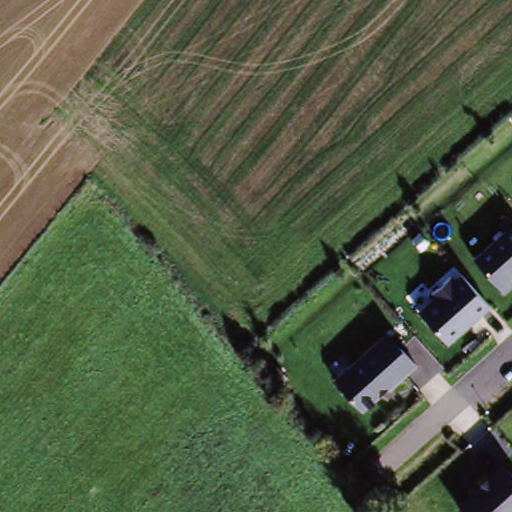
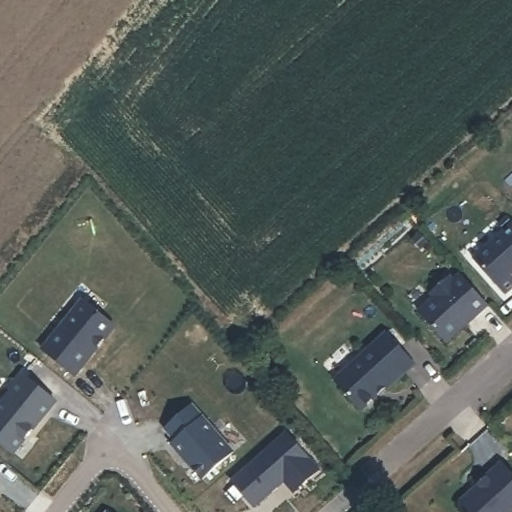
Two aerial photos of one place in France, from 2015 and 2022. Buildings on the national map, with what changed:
unchanged [(512,278),(512,290),(505,296),(472,258),(512,223),(512,278)]
unchanged [(491,307),(447,346),(417,311),(458,271),(491,307)]
new [(84,300),(117,325),(78,375),(52,355),(45,350),(53,339),(84,300)]
unchanged [(333,377),(385,329),(417,365),(363,413),(333,377)]
new [(25,376),(57,401),(16,455),(0,442),(0,409),(25,376)]
new [(195,406),(237,452),(207,480),(175,446),(180,442),(169,430),(195,406)]
new [(287,435),(319,470),(295,492),(285,481),(255,507),(233,483),(287,435)]
unchanged [(512,512),(456,512),(450,505),(504,460),(512,470),(512,512)]
new [(110,512),(109,512),(109,511),(110,512)]

